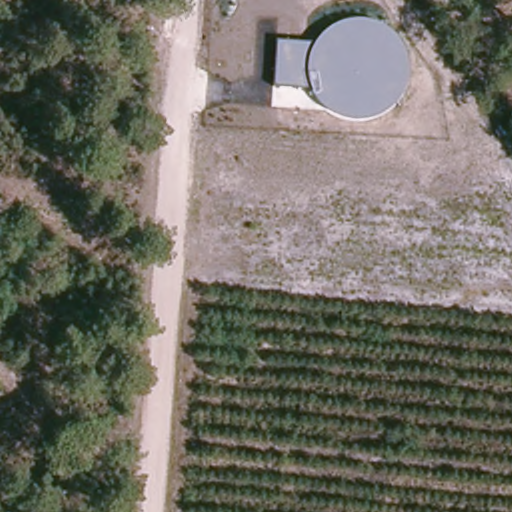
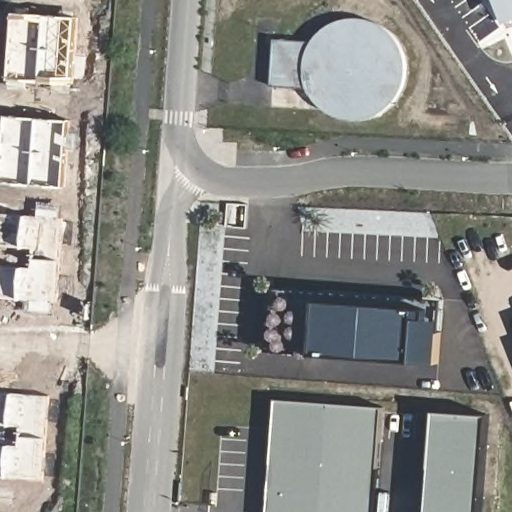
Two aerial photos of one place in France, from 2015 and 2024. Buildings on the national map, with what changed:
new [(512,22),(508,24),(499,0),(512,0),(512,22)]
new [(81,15),(77,84),(10,79),(15,11),(81,15)]
new [(76,120),(70,186),(4,181),(9,115),(76,120)]
new [(40,215),(40,201),(67,204),(65,217),(67,217),(59,313),(33,311),(34,300),(0,298),(0,264),(34,267),(35,248),(0,246),(0,212),(40,215)]
new [(320,286),(320,296),(430,305),(429,325),(420,324),(417,360),(269,348),(274,283),(320,286)]
new [(444,295),(439,361),(417,360),(420,324),(429,325),(430,305),(320,296),(320,286),(444,295)]
new [(54,396),(46,480),(0,477),(0,391),(54,396)]
new [(376,512),(268,512),(277,396),(385,405),(376,512)]
new [(479,512),(426,512),(434,410),(486,413),(479,512)]

